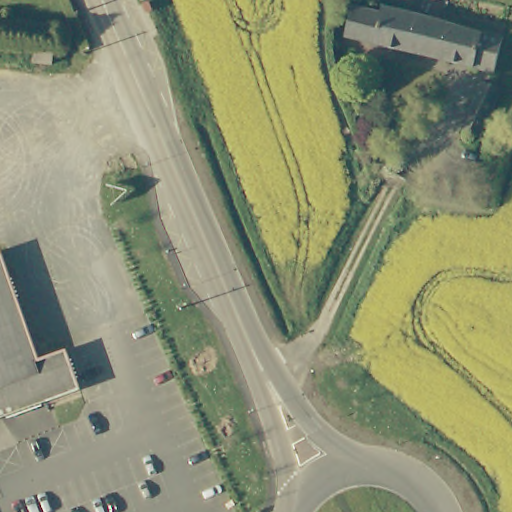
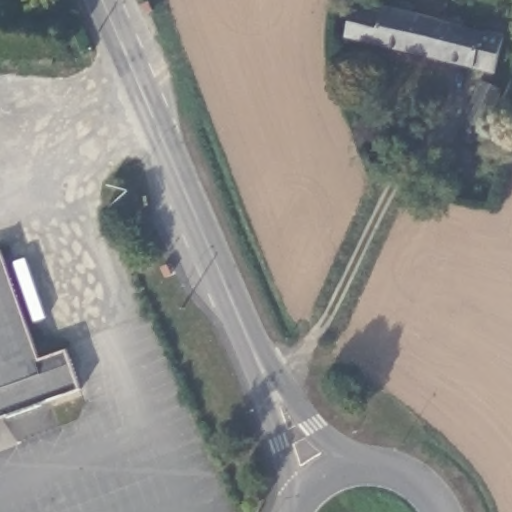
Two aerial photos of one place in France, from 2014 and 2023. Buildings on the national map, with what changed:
unchanged [(384,6),(505,37),(496,74),(347,38),(353,7),(382,10),(384,6)]
unchanged [(502,96),(478,144),(477,146),(474,148),(470,149),(467,148),(463,145),(462,142),(462,138),(464,134),(484,87),(502,96)]
unchanged [(37,360),(63,352),(76,390),(0,417),(0,254),(1,253),(37,360)]

